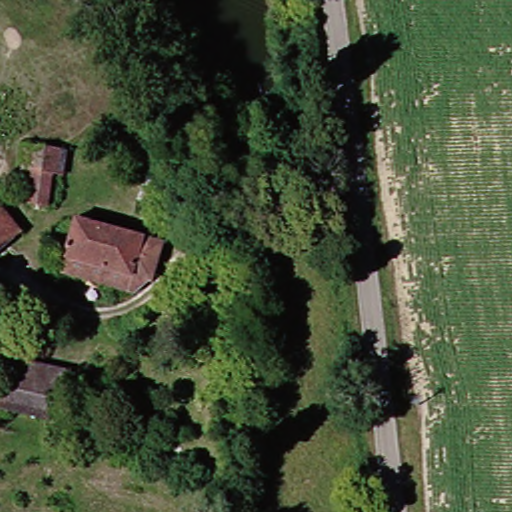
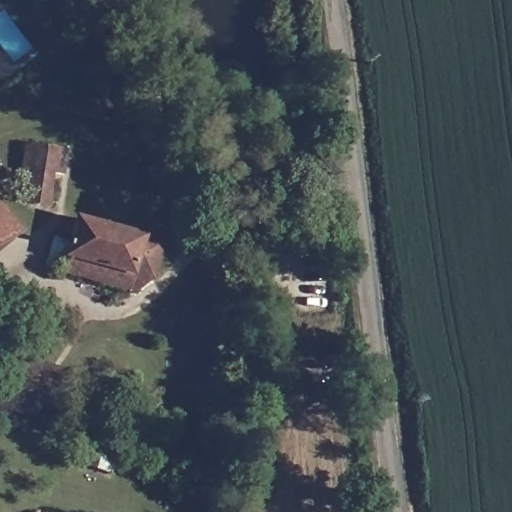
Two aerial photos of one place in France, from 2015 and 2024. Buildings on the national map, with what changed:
unchanged [(36,185),(20,182),(27,143),(83,153),(73,208),(33,201),(36,185)]
unchanged [(0,215),(0,187),(13,204),(0,215)]
unchanged [(0,260),(0,215),(13,204),(35,232),(0,260)]
unchanged [(72,259),(80,258),(85,215),(157,236),(176,241),(167,280),(143,278),(142,294),(72,274),(72,259)]
unchanged [(15,363),(71,379),(59,423),(2,407),(15,363)]

